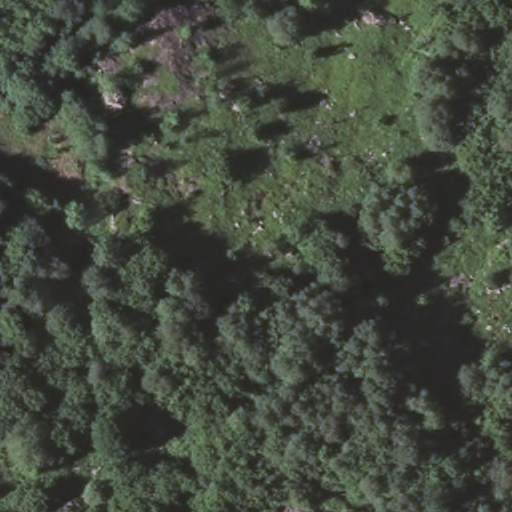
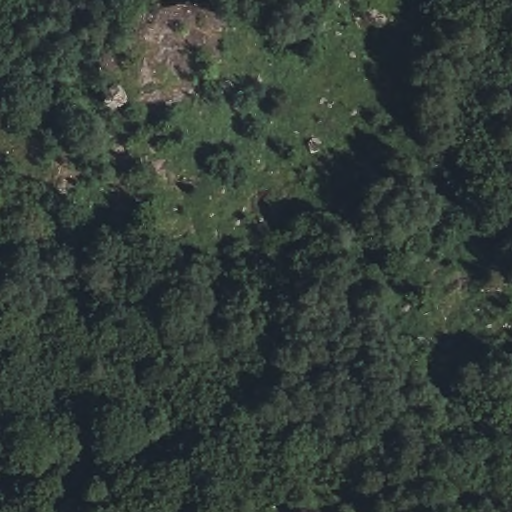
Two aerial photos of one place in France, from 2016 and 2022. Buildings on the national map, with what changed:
[]

